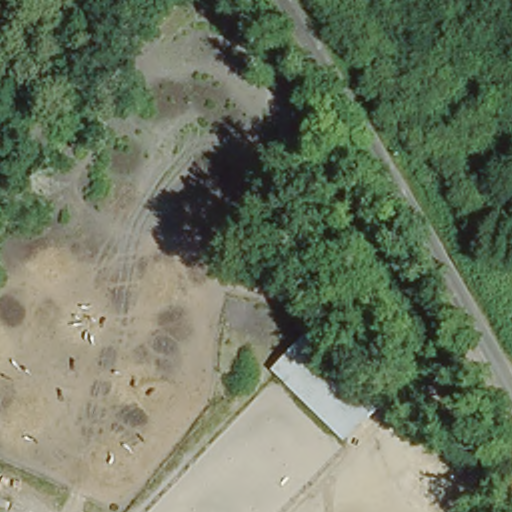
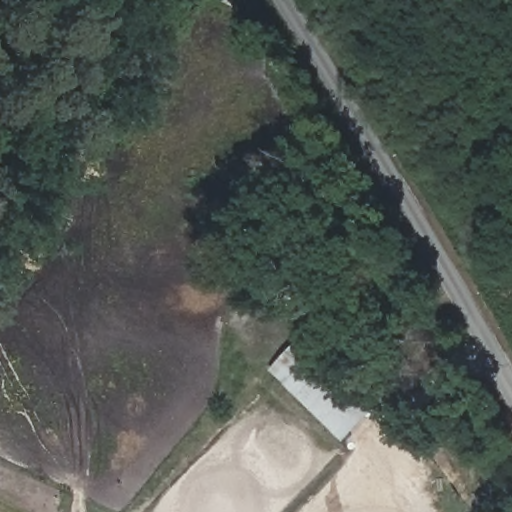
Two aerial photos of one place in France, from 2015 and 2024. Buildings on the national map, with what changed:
unchanged [(386,408),(342,446),(268,370),(311,329),(386,408)]

